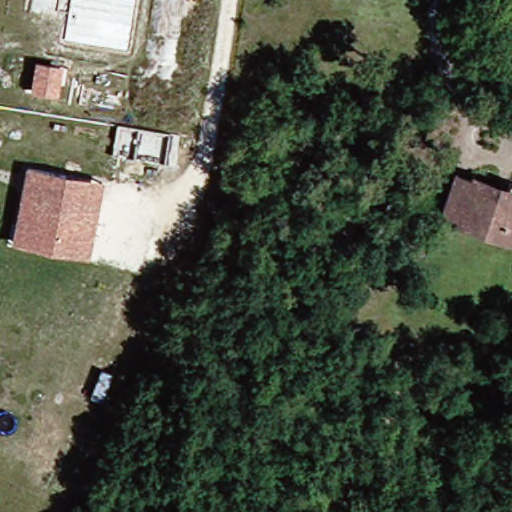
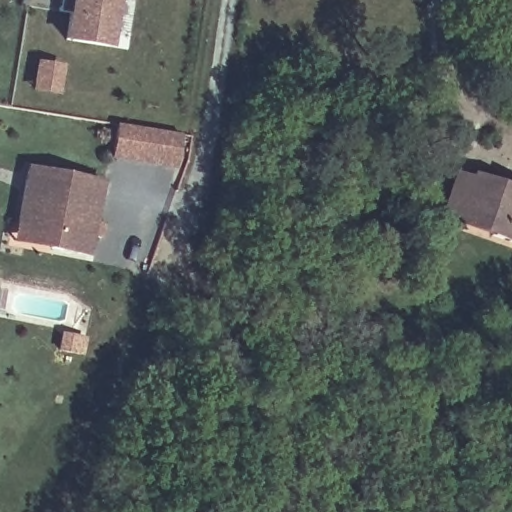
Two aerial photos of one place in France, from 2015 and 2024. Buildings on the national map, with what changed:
new [(64,43),(70,0),(119,0),(111,50),(64,43)]
new [(182,135),(177,170),(112,160),(116,126),(182,135)]
unchanged [(18,226),(25,190),(28,172),(29,170),(66,177),(75,178),(102,184),(99,202),(89,257),(51,250),(15,243),(18,226)]
unchanged [(458,213),(443,208),(457,170),(507,186),(511,175),(512,175),(512,241),(497,236),(456,221),(458,213)]

